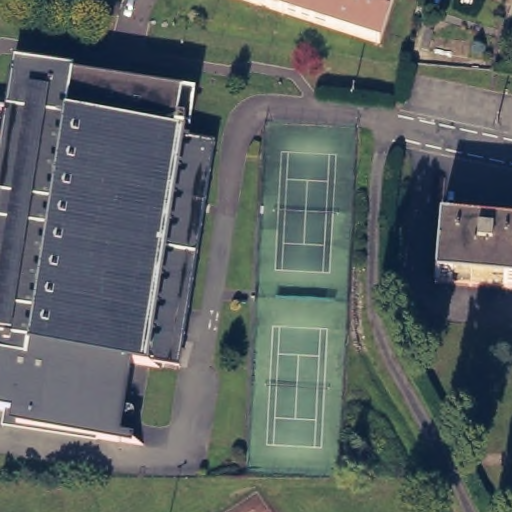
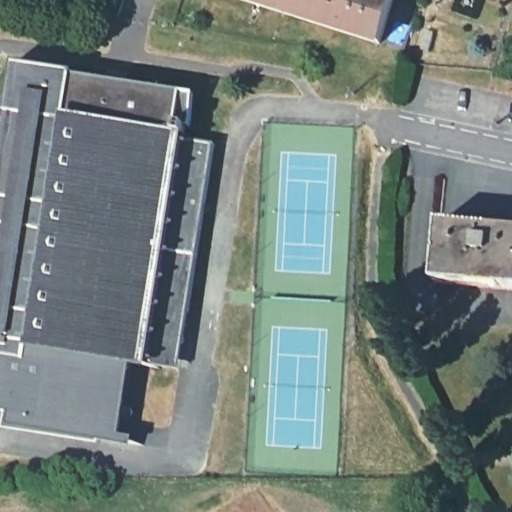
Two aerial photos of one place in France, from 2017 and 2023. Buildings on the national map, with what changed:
unchanged [(256,0),(393,0),(380,40),(256,0)]
unchanged [(184,121),(185,121),(182,146),(177,145),(176,150),(212,156),(183,338),(156,335),(152,357),(163,358),(162,363),(152,362),(129,358),(116,437),(18,422),(19,418),(5,417),(7,407),(0,406),(0,384),(1,377),(0,377),(0,151),(2,138),(0,138),(0,113),(6,114),(14,64),(189,91),(184,121)]
unchanged [(512,226),(512,285),(435,278),(440,220),(512,226)]

